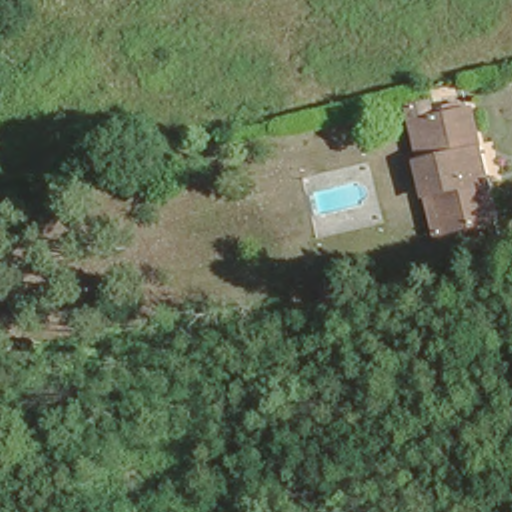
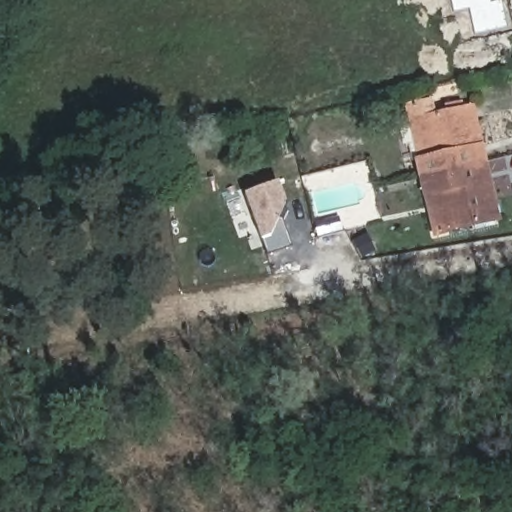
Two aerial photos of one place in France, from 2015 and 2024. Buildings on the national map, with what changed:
new [(490,2),(500,0),(506,25),(475,32),(470,9),(454,12),(451,0),(490,0),(490,2)]
unchanged [(495,219),(448,229),(440,190),(427,192),(420,156),(412,119),(425,116),(472,106),(495,219)]
new [(285,206),(280,219),(291,246),(266,255),(244,195),(276,182),(285,206)]

